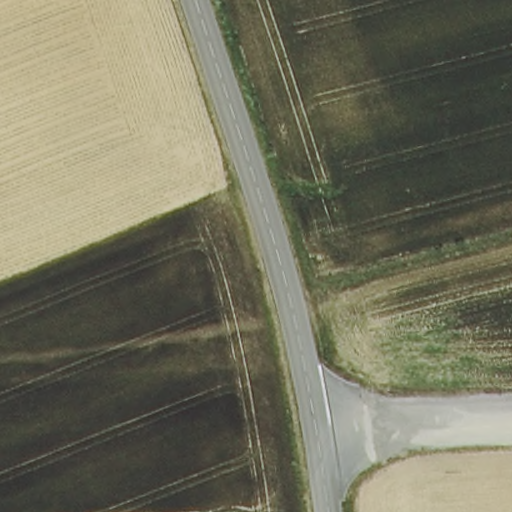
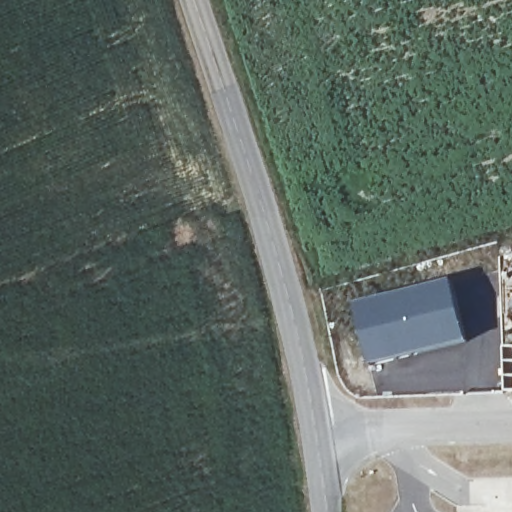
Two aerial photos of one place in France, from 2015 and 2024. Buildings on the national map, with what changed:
new [(370,366),(356,307),(454,284),(469,342),(370,366)]

